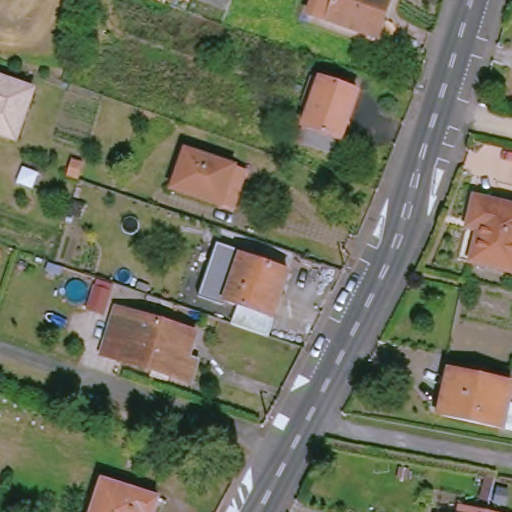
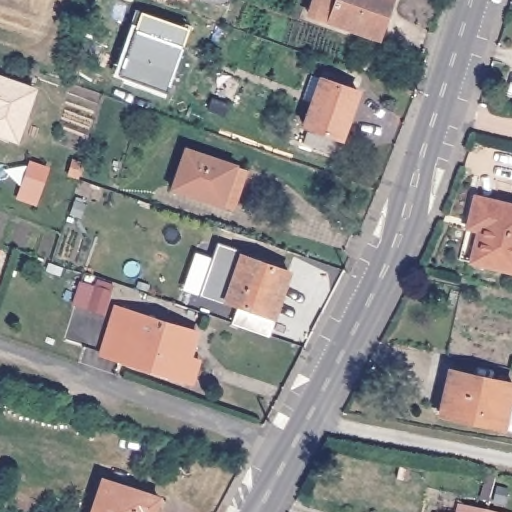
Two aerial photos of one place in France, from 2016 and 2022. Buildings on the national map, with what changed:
unchanged [(310,14),(315,0),(394,0),(380,38),(330,20),(310,14)]
new [(127,54),(142,15),(175,27),(190,33),(183,50),(165,92),(129,79),(120,75),(127,54)]
unchanged [(35,89),(17,140),(0,134),(0,76),(35,89)]
unchanged [(305,144),(310,128),(305,126),(320,78),(360,92),(343,139),(340,139),(335,154),(305,144)]
unchanged [(183,194),(197,154),(245,171),(231,211),(183,194)]
unchanged [(470,230),(473,222),(478,199),(512,206),(512,272),(476,262),(466,260),(475,231),(470,230)]
unchanged [(237,318),(241,304),(227,299),(243,251),(293,268),(286,290),(280,288),(273,308),(279,312),(272,331),(237,318)]
unchanged [(105,358),(116,305),(220,337),(201,390),(105,358)]
unchanged [(455,370),(512,384),(512,430),(445,416),(455,370)]
unchanged [(106,482),(162,502),(159,512),(97,512),(106,482)]
unchanged [(470,508),(484,512),(469,512),(470,508)]

